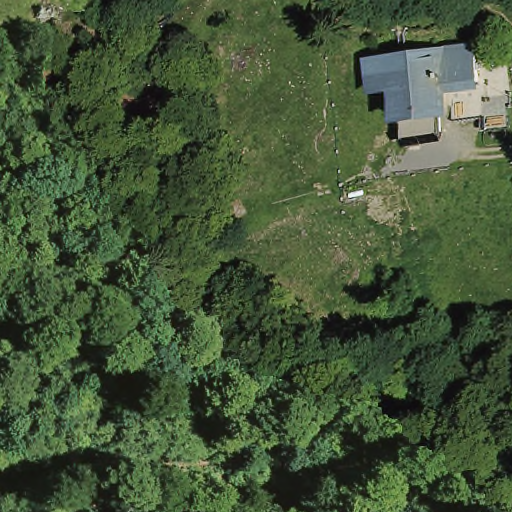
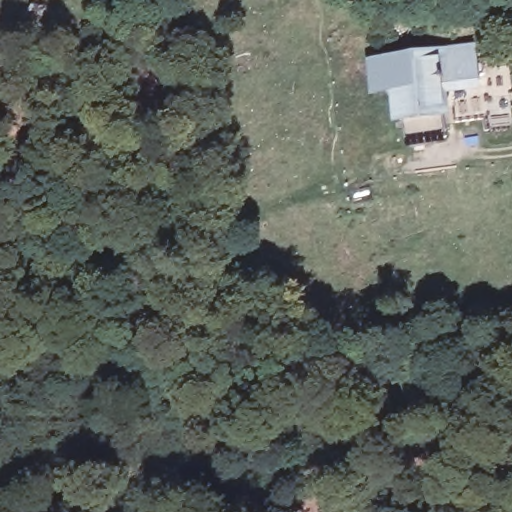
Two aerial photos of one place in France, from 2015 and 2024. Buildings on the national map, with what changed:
unchanged [(435,48),(475,45),(480,80),(439,86),(435,48)]
unchanged [(439,86),(442,129),(395,134),(392,80),(372,81),(370,54),(390,52),(435,48),(439,86)]

